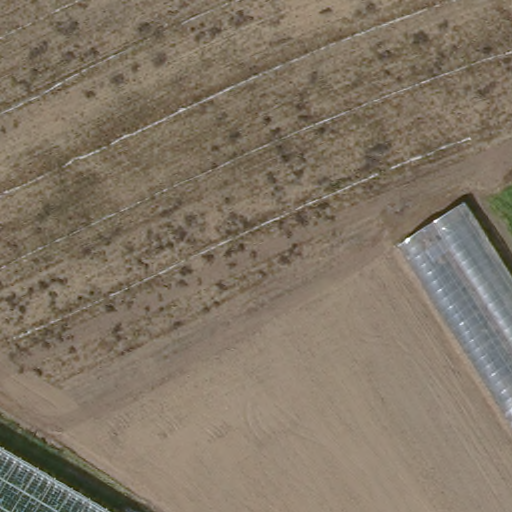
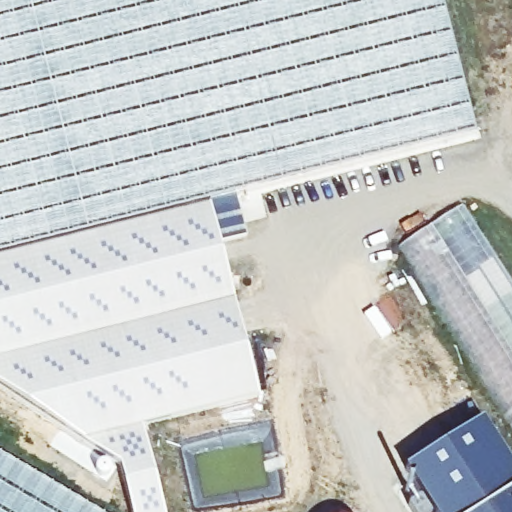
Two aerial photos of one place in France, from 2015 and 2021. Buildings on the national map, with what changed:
new [(477,134),(211,200),(0,253),(0,0),(444,0),(477,134)]
new [(260,397),(145,425),(166,512),(133,512),(120,467),(86,441),(0,385),(0,253),(211,200),(260,397)]
unchanged [(465,205),(512,280),(512,421),(401,247),(465,205)]
unchanged [(109,512),(0,512),(0,450),(109,512)]

